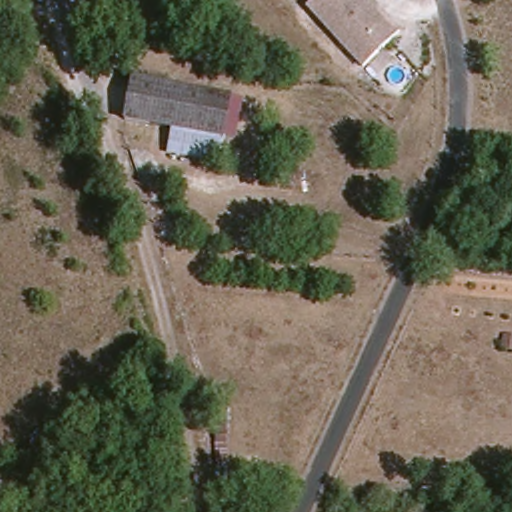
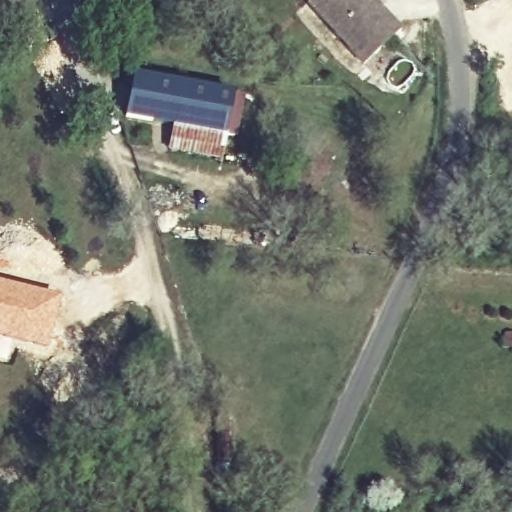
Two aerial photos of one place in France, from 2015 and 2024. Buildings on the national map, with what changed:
unchanged [(388,14),(400,27),(362,60),(308,0),(376,0),(388,14)]
unchanged [(237,150),(168,138),(171,119),(122,111),(130,72),(221,88),(213,127),(241,134),(237,150)]
unchanged [(221,88),(249,93),(241,134),(213,127),(221,88)]
new [(60,297),(47,348),(15,341),(9,360),(0,357),(0,282),(60,297)]

